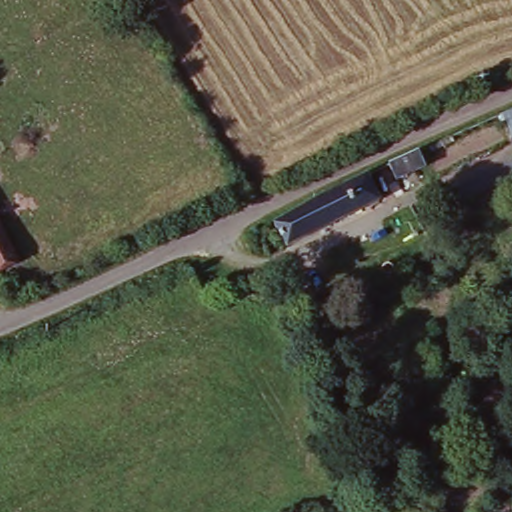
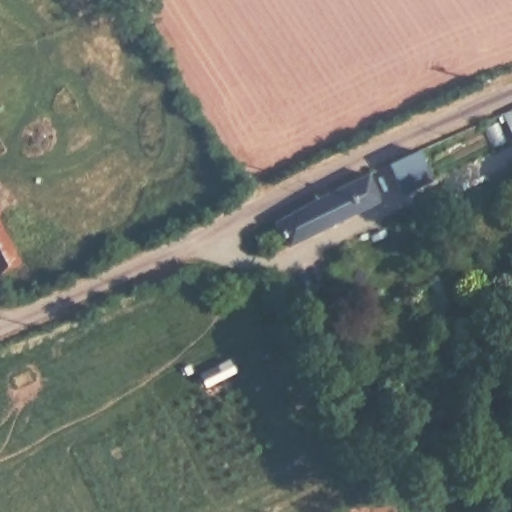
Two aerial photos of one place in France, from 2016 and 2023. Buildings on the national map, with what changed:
unchanged [(512,115),(512,132),(507,117),(512,115)]
unchanged [(419,151),(427,167),(395,180),(390,165),(419,151)]
unchanged [(310,198),(367,171),(381,196),(287,240),(274,218),(310,198)]
unchanged [(19,257),(0,266),(0,222),(19,257)]

